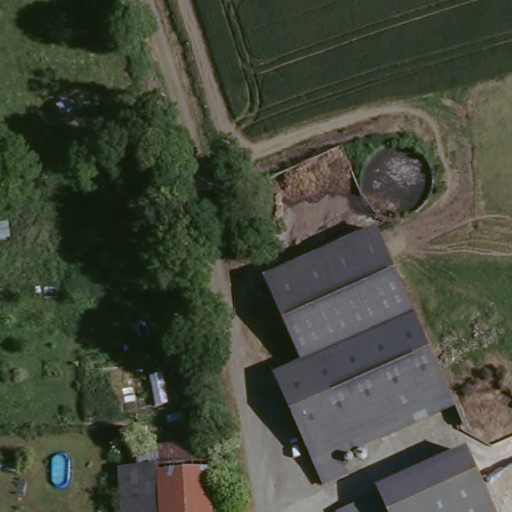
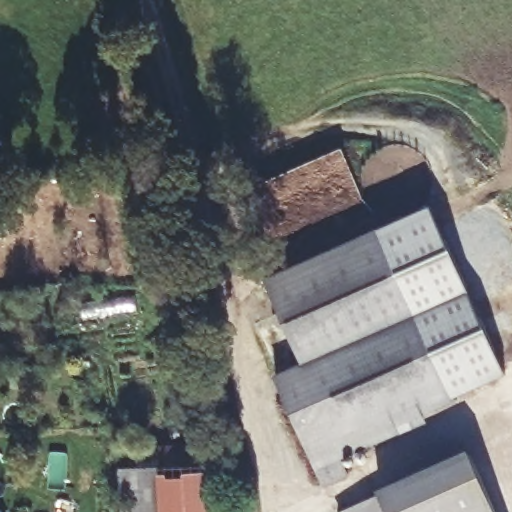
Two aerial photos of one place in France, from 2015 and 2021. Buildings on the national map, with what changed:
new [(412,319),(378,237),(433,214),(504,375),(447,401),(412,319)]
unchanged [(298,368),(264,284),(378,237),(412,319),(298,368)]
unchanged [(452,413),(337,461),(343,478),(321,488),(276,377),(298,368),(412,319),(452,413)]
unchanged [(468,458),(491,512),(383,512),(377,496),(468,458)]
unchanged [(139,468),(207,466),(208,512),(141,512),(139,468)]
unchanged [(141,512),(116,512),(115,469),(139,468),(141,512)]
unchanged [(383,512),(337,512),(377,496),(383,512)]

